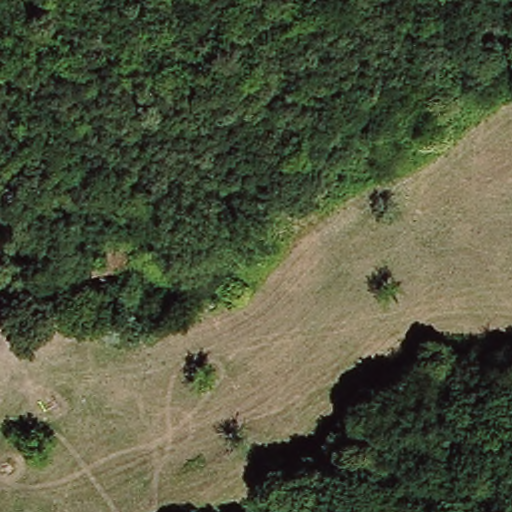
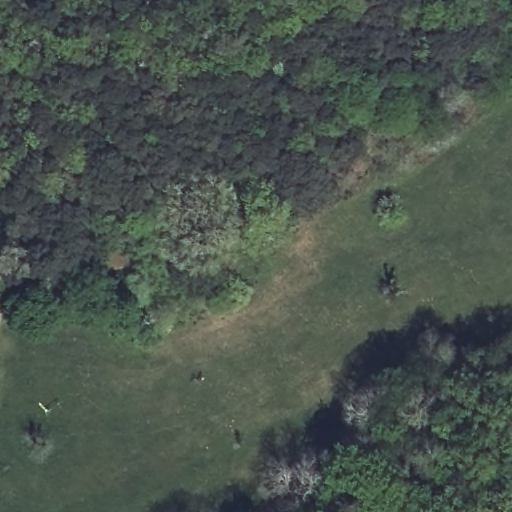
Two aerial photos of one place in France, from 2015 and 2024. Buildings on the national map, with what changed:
unchanged [(73,335),(17,345),(14,332),(71,322),(73,335)]

